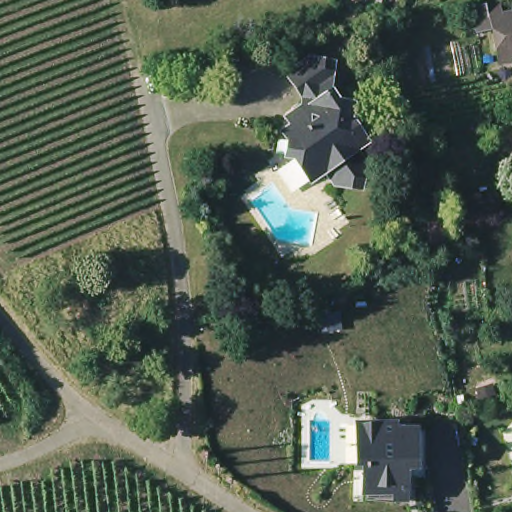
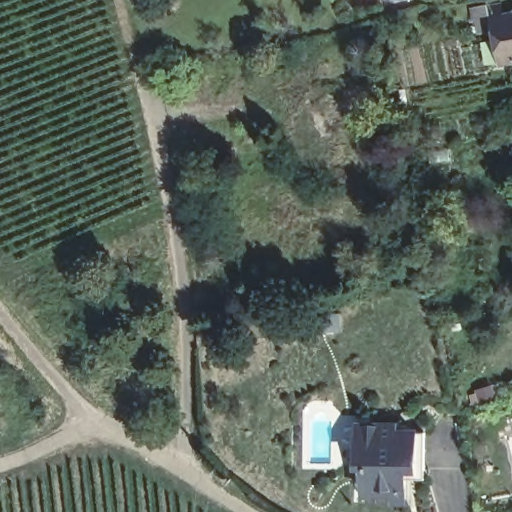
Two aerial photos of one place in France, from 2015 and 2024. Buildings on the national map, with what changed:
unchanged [(494,19),(492,6),(503,4),(505,17),(512,15),(512,61),(501,64),(501,61),(499,52),(494,19)]
demolished [(328,171),(312,181),(296,159),(288,157),(291,141),(284,132),(293,126),(296,112),(305,106),(306,98),(289,74),(311,59),(324,62),(332,74),(330,88),(339,102),(354,104),(352,120),(368,142),(357,150),(328,171)]
unchanged [(418,425),(419,471),(408,472),(408,506),(393,507),(393,497),(364,498),(363,469),(356,468),(356,426),(418,425)]

